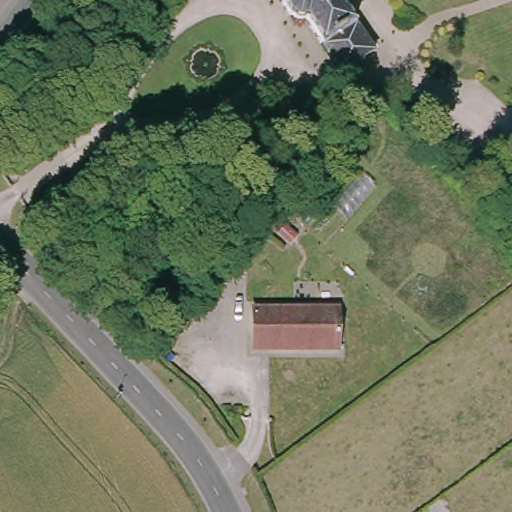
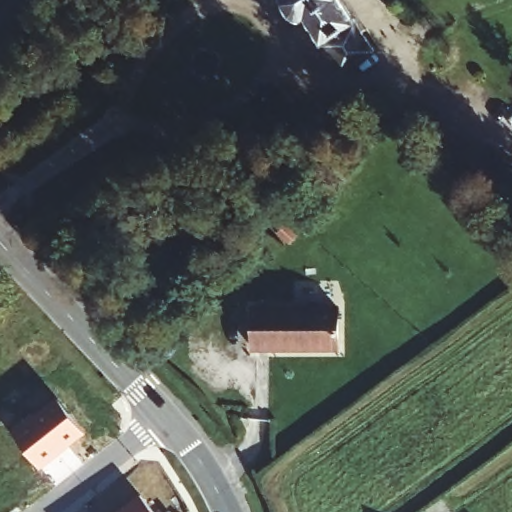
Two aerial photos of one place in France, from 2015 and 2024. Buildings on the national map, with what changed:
unchanged [(355,22),(354,22),(372,48),(372,47),(374,50),(371,52),(371,51),(346,71),(344,74),(341,70),(342,70),(322,44),(320,41),(305,19),(299,20),(295,20),(282,3),(281,0),(338,0),(352,19),(355,22)]
unchanged [(340,352),(250,353),(250,306),(340,305),(340,352)]
new [(40,469),(12,433),(56,397),(85,434),(40,469)]
new [(154,512),(119,512),(140,496),(154,512)]

